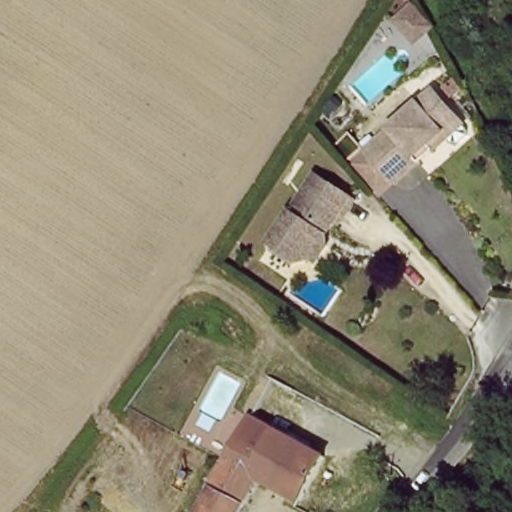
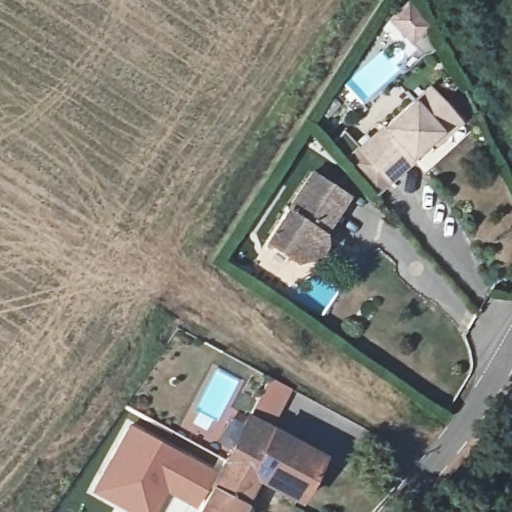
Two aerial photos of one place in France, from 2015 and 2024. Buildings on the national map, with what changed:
unchanged [(413,45),(392,24),(410,7),(430,29),(413,45)]
unchanged [(420,149),(395,171),(378,186),(349,154),(366,139),(384,123),(420,91),(435,78),(441,84),(460,105),(466,112),(423,151),(422,152),(420,149)]
unchanged [(321,245),(327,249),(317,267),(311,264),(297,266),(267,247),(313,176),(350,201),(321,245)]
unchanged [(317,460),(294,504),(252,481),(236,512),(195,512),(245,422),(317,460)]
new [(193,507),(167,494),(156,512),(127,512),(92,492),(130,424),(217,472),(197,508),(193,507)]

